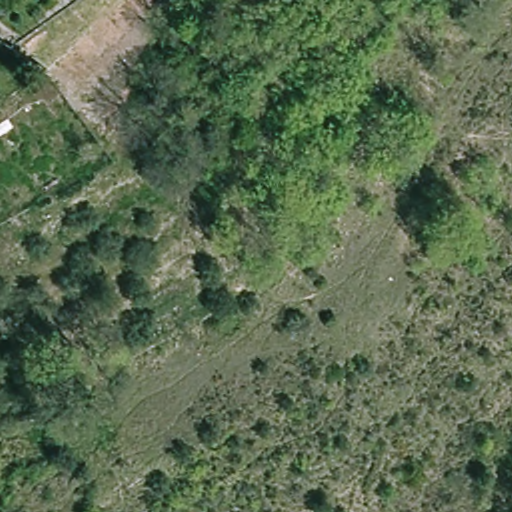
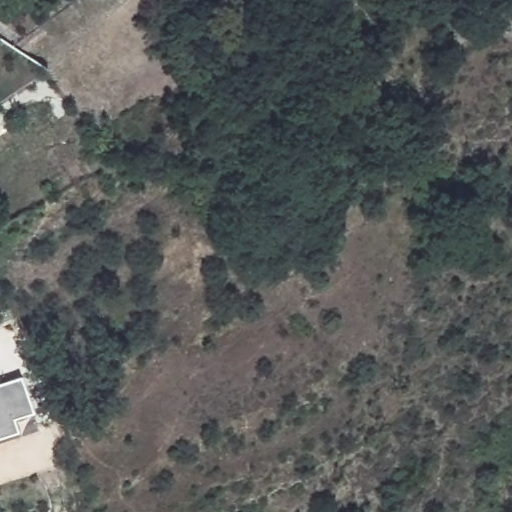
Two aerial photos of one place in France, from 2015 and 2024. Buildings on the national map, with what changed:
new [(32,412),(12,418),(16,432),(0,437),(0,383),(20,376),(32,412)]

